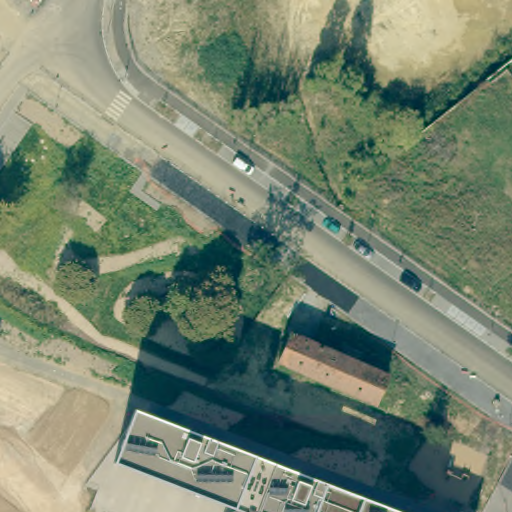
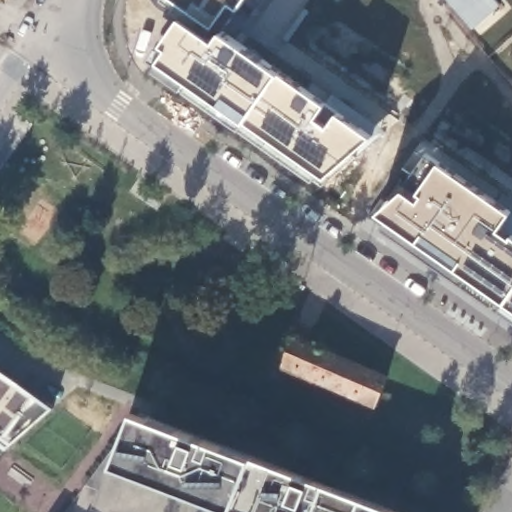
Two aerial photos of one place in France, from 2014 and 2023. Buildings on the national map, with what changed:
new [(306,6),(312,11),(282,53),(349,102),(304,172),(149,65),(183,17),(160,1),(161,0),(310,0),(306,6)]
new [(382,228),(387,219),(377,211),(409,186),(418,193),(439,160),(512,210),(499,229),(512,239),(512,317),(382,228)]
unchanged [(386,377),(375,405),(276,363),(288,335),(386,377)]
new [(28,412),(7,439),(0,435),(0,370),(53,408),(40,421),(28,412)]
unchanged [(252,456),(395,512),(236,512),(239,511),(232,508),(114,461),(134,410),(252,456)]

